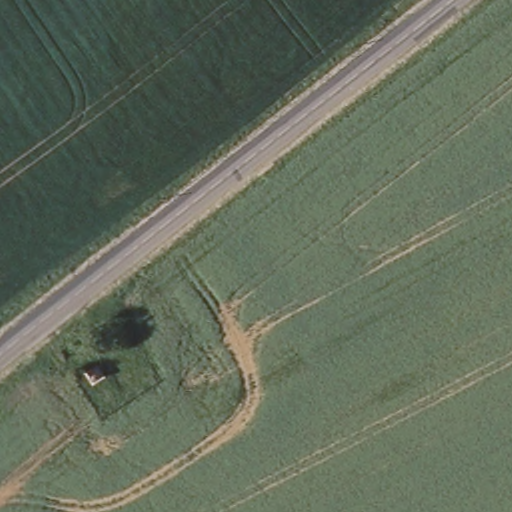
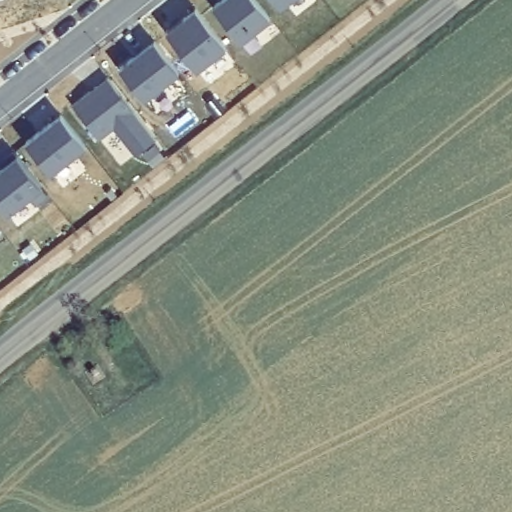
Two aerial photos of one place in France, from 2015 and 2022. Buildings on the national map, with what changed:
new [(224,0),(255,0),(271,20),(242,43),(214,8),(224,0)]
new [(282,9),(274,0),(293,0),(282,9)]
new [(197,10),(227,49),(198,72),(167,33),(197,10)]
new [(155,42),(180,74),(145,101),(120,70),(155,42)]
new [(108,79),(157,141),(137,157),(115,130),(100,141),(74,107),(108,79)]
new [(62,116),(87,147),(51,175),(27,143),(62,116)]
new [(5,167),(2,163),(15,153),(49,196),(36,206),(30,198),(8,215),(0,206),(0,171),(5,167)]

